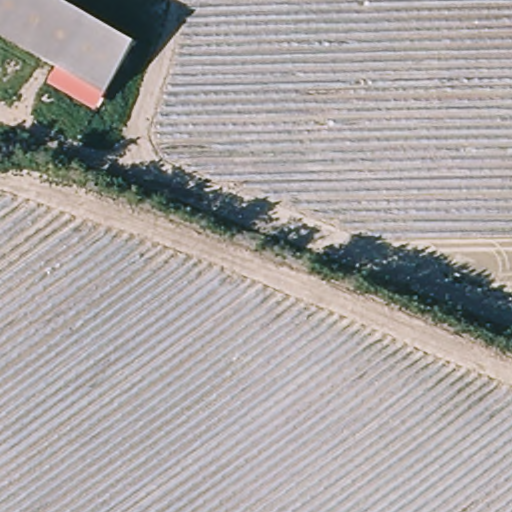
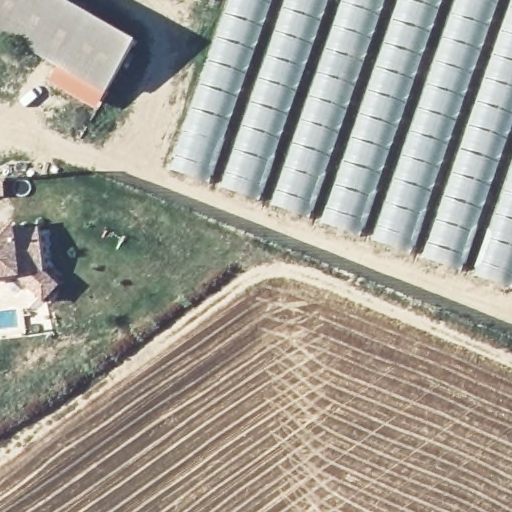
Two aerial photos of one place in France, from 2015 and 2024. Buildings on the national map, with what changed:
unchanged [(131,45),(101,94),(0,35),(0,0),(58,0),(131,45)]
new [(172,171),(230,8),(207,0),(512,0),(512,290),(172,171)]
new [(94,109),(48,83),(56,67),(101,94),(94,109)]
new [(13,231),(38,229),(43,273),(56,286),(43,301),(17,276),(0,278),(0,226),(13,224),(13,231)]

